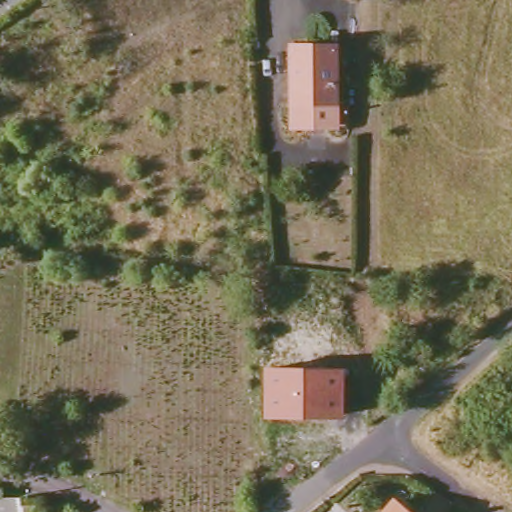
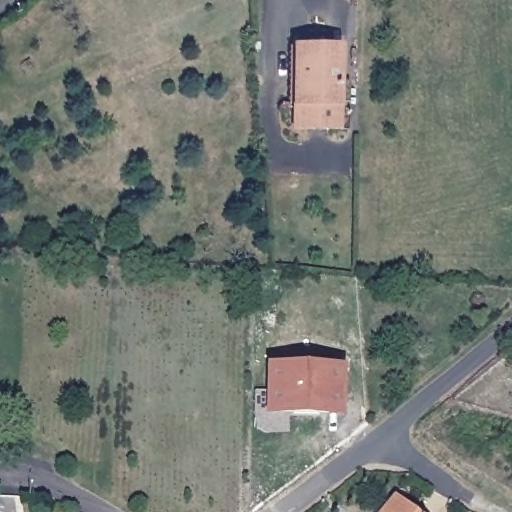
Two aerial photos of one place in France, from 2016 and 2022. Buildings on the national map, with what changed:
unchanged [(340,104),(295,105),(295,45),(339,45),(340,104)]
unchanged [(340,104),(340,128),(295,129),(295,105),(340,104)]
unchanged [(345,419),(265,417),(267,367),(345,369),(345,419)]
unchanged [(386,512),(395,500),(410,512),(386,512)]

